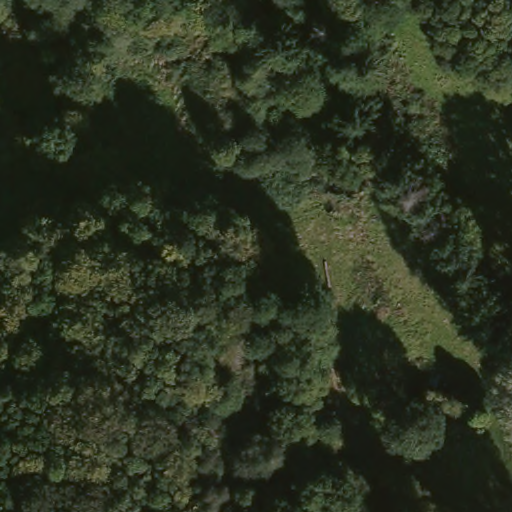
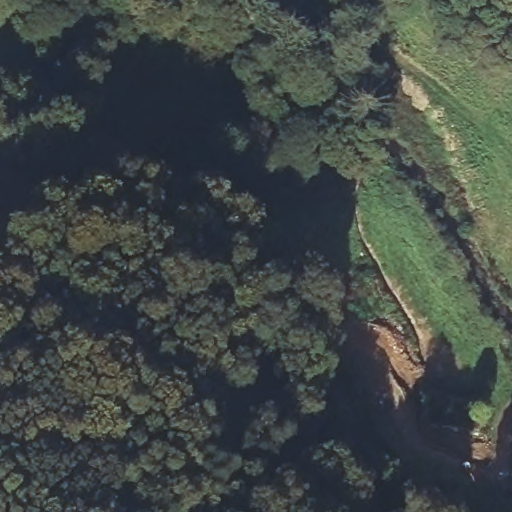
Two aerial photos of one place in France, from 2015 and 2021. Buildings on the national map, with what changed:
unchanged [(432,465),(403,460),(388,457),(393,436),(437,442),(432,465)]

